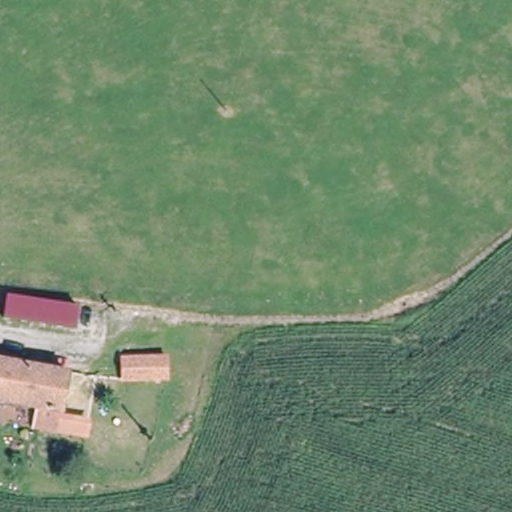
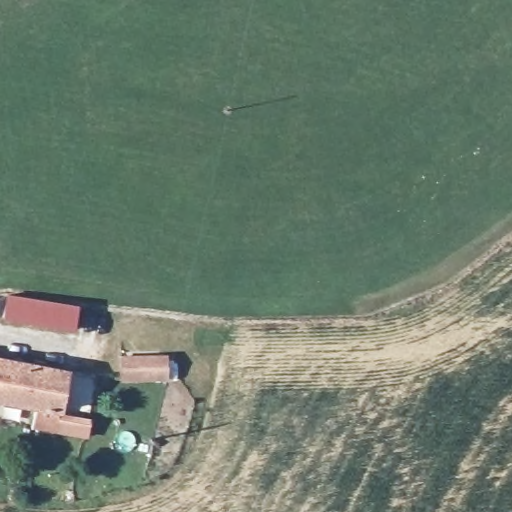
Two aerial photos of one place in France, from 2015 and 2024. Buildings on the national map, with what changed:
unchanged [(9,298),(76,310),(72,332),(5,322),(9,298)]
unchanged [(62,415),(86,419),(86,432),(77,431),(36,424),(39,404),(0,398),(0,359),(68,370),(62,415)]
unchanged [(164,382),(121,382),(121,361),(165,361),(164,382)]

